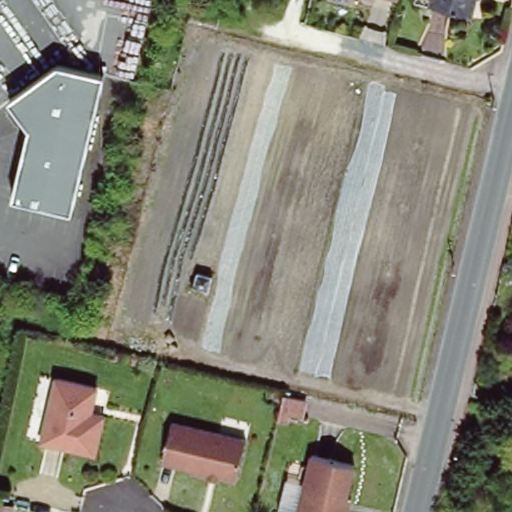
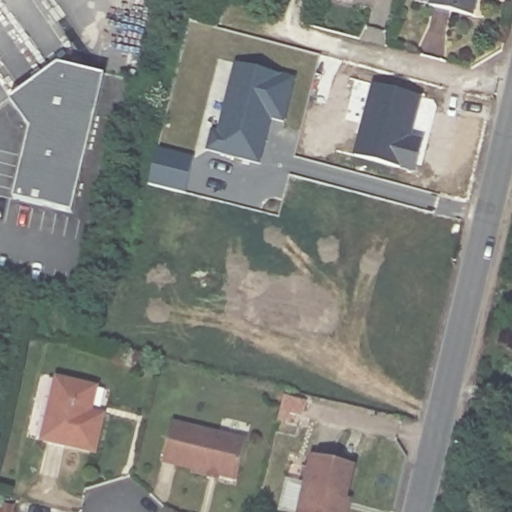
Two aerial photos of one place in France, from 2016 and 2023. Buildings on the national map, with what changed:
unchanged [(428,0),(473,0),(470,12),(428,0)]
new [(285,125),(273,121),(262,165),(207,150),(211,132),(219,133),(235,63),(296,78),(285,125)]
unchanged [(10,100),(58,65),(103,76),(71,213),(12,198),(28,127),(10,100)]
new [(412,137),(424,141),(415,175),(355,158),(372,84),(422,97),(412,137)]
new [(188,193),(148,185),(157,148),(195,157),(188,193)]
unchanged [(197,273),(210,277),(206,291),(193,287),(197,273)]
unchanged [(51,373),(93,383),(88,407),(100,410),(90,449),(36,435),(51,373)]
unchanged [(303,395),(299,412),(286,409),(284,417),(277,415),(278,414),(283,390),(303,395)]
unchanged [(208,475),(209,472),(192,467),(192,465),(190,465),(178,462),(179,460),(177,460),(163,456),(172,419),(244,436),(235,476),(220,471),(218,478),(208,475)]
unchanged [(347,512),(298,512),(285,508),(292,479),(306,483),(315,451),(355,461),(348,493),(351,494),(347,512)]

